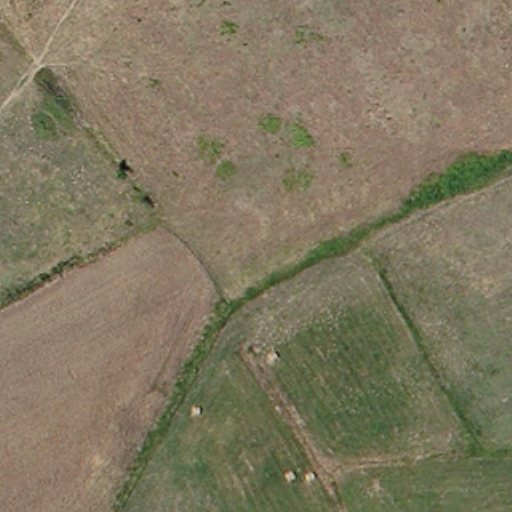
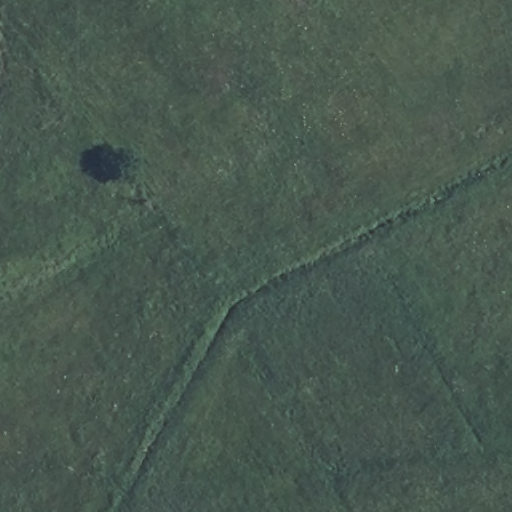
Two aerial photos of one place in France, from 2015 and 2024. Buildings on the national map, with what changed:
[]

